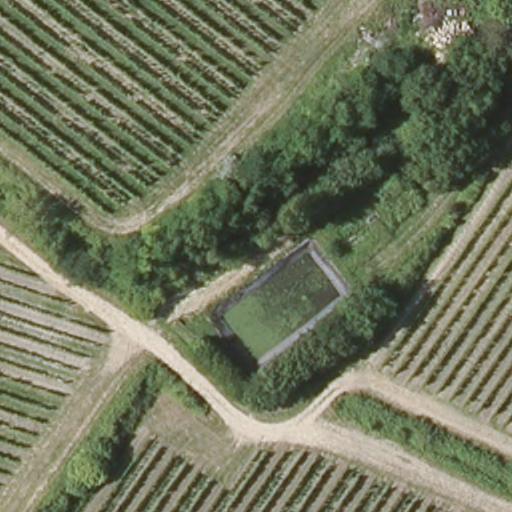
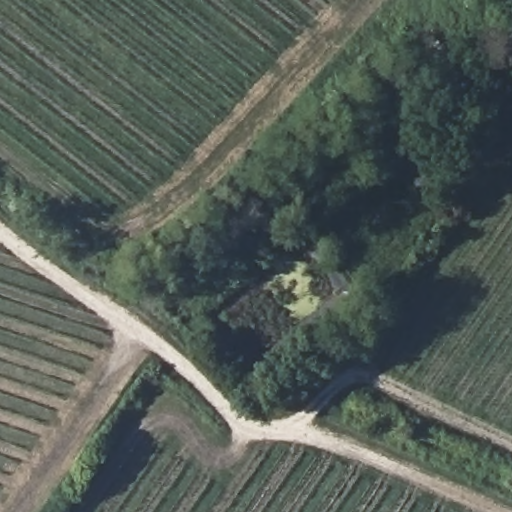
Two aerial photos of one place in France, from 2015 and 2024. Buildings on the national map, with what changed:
[]

